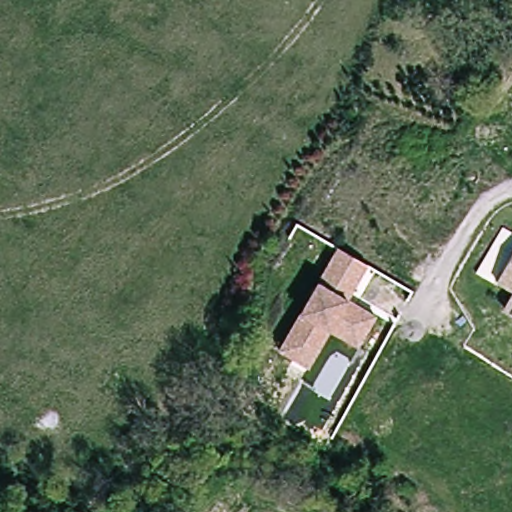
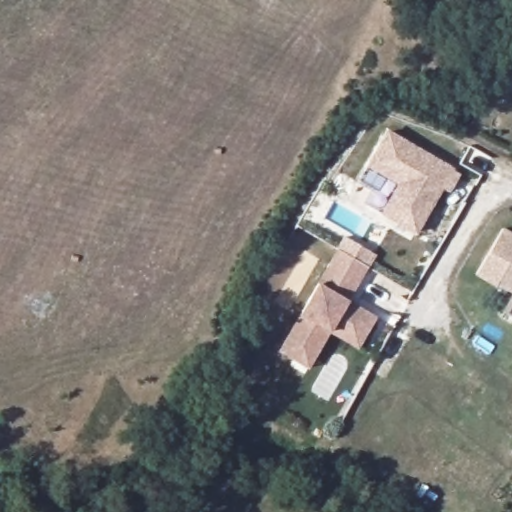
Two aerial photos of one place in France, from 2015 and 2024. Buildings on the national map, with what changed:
new [(396,185),(366,166),(387,130),(455,170),(461,174),(450,193),(442,189),(416,235),(380,215),(396,185)]
new [(475,276),(503,228),(512,232),(512,253),(495,283),(492,286),(475,276)]
unchanged [(347,302),(375,319),(357,348),(329,331),(307,369),(277,351),(335,249),(366,267),(347,302)]
unchanged [(512,253),(512,293),(495,283),(512,253)]

